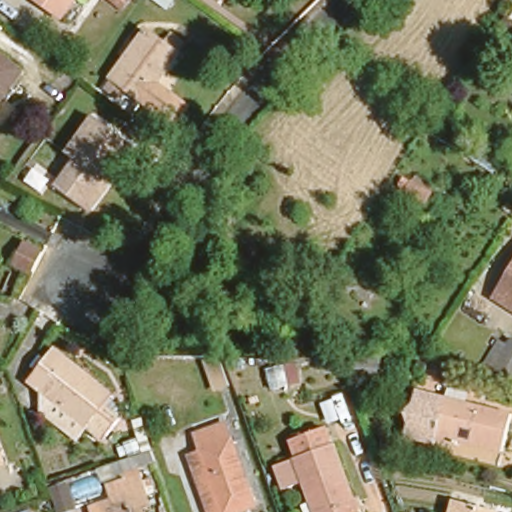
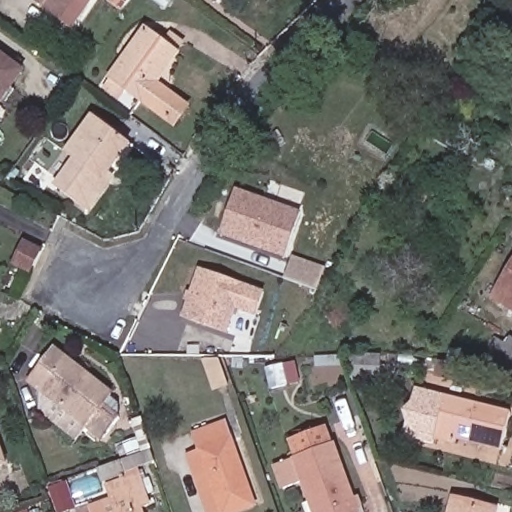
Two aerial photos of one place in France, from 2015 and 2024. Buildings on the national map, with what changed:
unchanged [(65,18),(37,0),(78,0),(65,18)]
unchanged [(107,78),(140,33),(170,57),(151,82),(186,108),(174,126),(107,78)]
unchanged [(0,98),(0,57),(20,71),(0,98)]
unchanged [(107,188),(91,213),(57,191),(74,162),(60,152),(89,112),(127,140),(99,180),(107,188)]
new [(220,234),(235,188),(302,211),(285,257),(220,234)]
unchanged [(26,264),(11,256),(21,236),(37,244),(26,264)]
unchanged [(495,296),(512,266),(512,306),(495,296)]
new [(236,310),(228,334),(181,318),(187,302),(182,300),(186,291),(190,292),(199,268),(266,291),(256,317),(236,310)]
unchanged [(493,346),(512,314),(512,356),(493,346)]
unchanged [(52,347),(111,382),(105,393),(122,403),(110,426),(92,415),(85,431),(45,407),(51,392),(31,380),(52,347)]
unchanged [(512,406),(512,449),(478,441),(476,450),(451,444),(450,451),(420,444),(425,430),(420,415),(432,407),(436,389),(512,406)]
unchanged [(195,455),(187,436),(230,422),(260,507),(245,512),(221,512),(201,453),(195,455)]
unchanged [(304,451),(300,436),(330,425),(360,508),(350,512),(318,512),(298,454),(304,451)]
unchanged [(0,465),(0,453),(4,463),(0,465)]
unchanged [(145,473),(154,505),(144,510),(145,512),(115,512),(106,486),(145,473)]
unchanged [(496,512),(455,512),(457,502),(496,512)]

